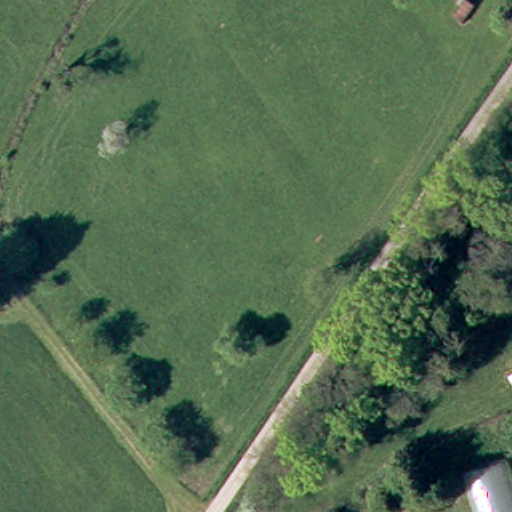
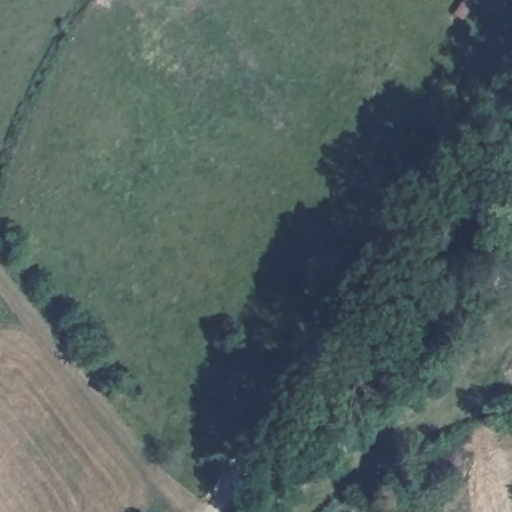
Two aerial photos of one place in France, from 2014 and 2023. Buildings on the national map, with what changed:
demolished [(463,475),(505,458),(512,480),(512,512),(475,512),(463,475)]

